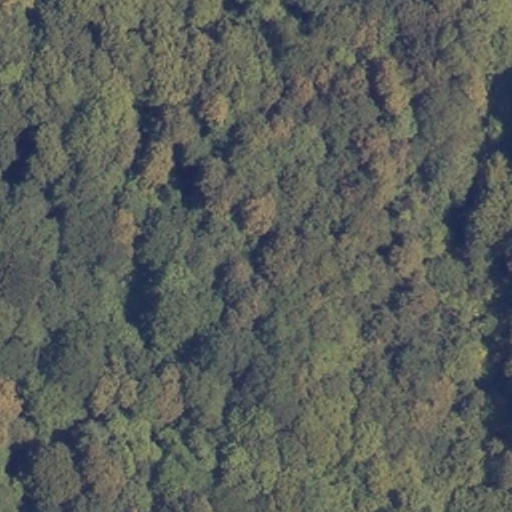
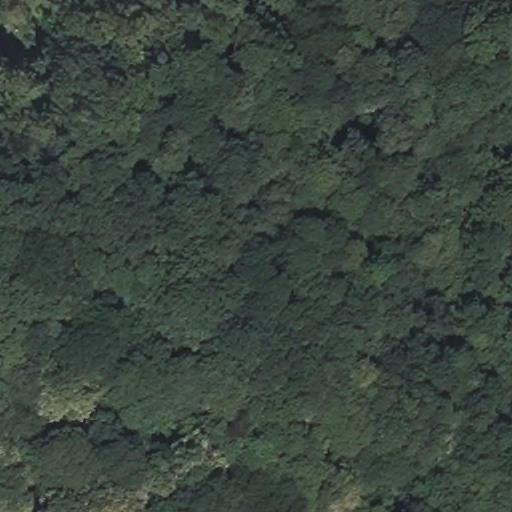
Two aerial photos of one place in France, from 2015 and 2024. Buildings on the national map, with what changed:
[]

